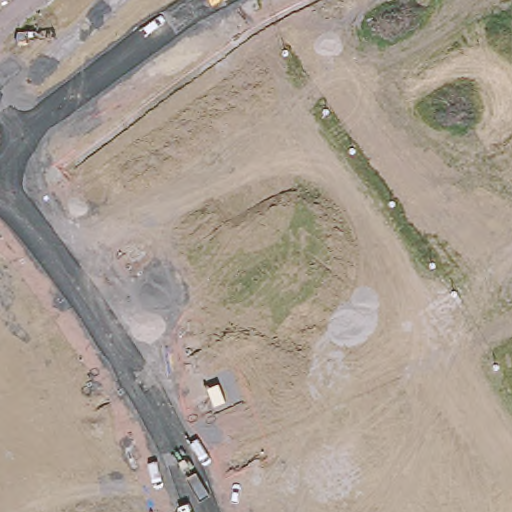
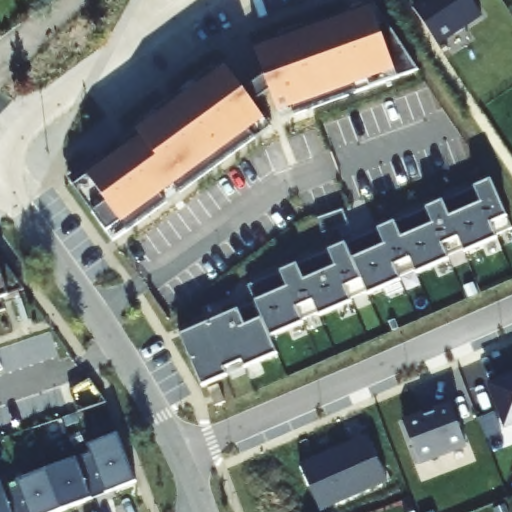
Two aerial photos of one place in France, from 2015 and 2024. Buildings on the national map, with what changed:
new [(231,60),(254,90),(274,75),(264,42),(384,0),(425,65),(303,109),(299,101),(285,106),(281,90),(263,103),(278,125),(121,238),(76,171),(231,60)]
new [(484,0),(492,11),(449,42),(423,7),(432,0),(484,0)]
new [(254,280),(498,175),(512,209),(512,227),(503,231),(504,235),(471,249),(469,246),(454,252),(456,255),(423,270),(422,266),(406,273),(408,276),(374,290),(373,287),(357,295),(359,297),(325,311),(324,308),(309,315),(310,318),(277,332),(284,349),(243,366),(241,360),(224,367),(227,373),(207,382),(186,330),(261,297),(254,280)]
new [(350,204),(356,219),(329,228),(324,213),(350,204)]
new [(31,286),(8,293),(12,306),(0,310),(0,252),(5,250),(31,286)]
new [(486,385),(512,374),(512,426),(504,429),(486,385)]
new [(412,425),(443,414),(442,410),(458,404),(474,448),(427,465),(412,425)]
new [(142,480),(111,491),(93,443),(124,432),(142,480)]
new [(301,465),(367,435),(388,482),(323,512),(321,512),(301,465)]
new [(97,496),(54,512),(34,512),(21,476),(81,455),(97,496)]
new [(88,471),(102,466),(111,491),(98,496),(88,471)]
new [(0,480),(5,478),(18,512),(0,512),(0,480)]
new [(11,493),(25,488),(34,512),(18,512),(11,493)]
new [(103,510),(103,512),(99,512),(103,510)]

